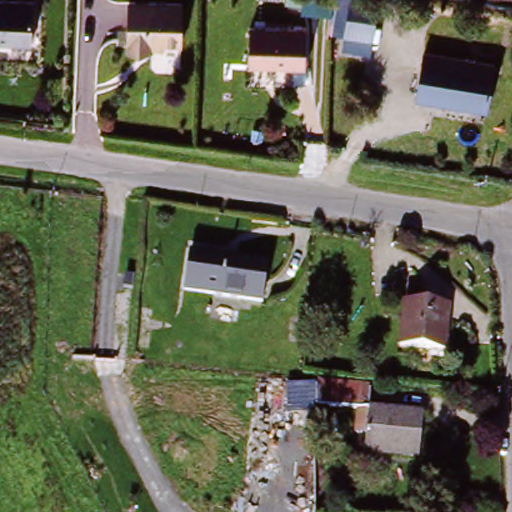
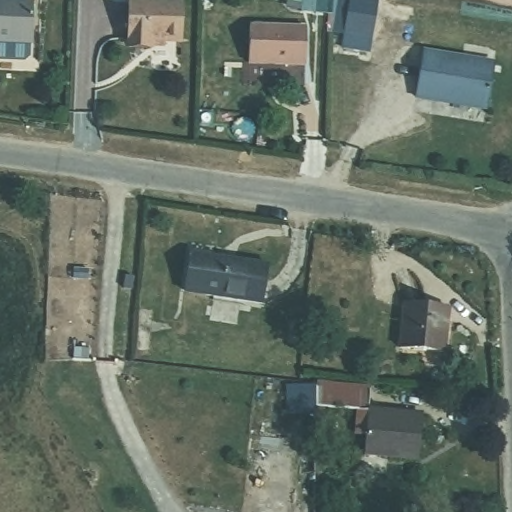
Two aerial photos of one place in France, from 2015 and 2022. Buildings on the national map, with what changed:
unchanged [(32,0),(32,40),(0,39),(0,0),(32,0)]
unchanged [(172,44),(143,42),(140,47),(120,46),(122,0),(173,4),(172,44)]
unchanged [(380,0),(382,0),(375,36),(337,27),(342,0),(380,0)]
unchanged [(303,30),(300,67),(243,61),(247,24),(303,30)]
unchanged [(482,105),(430,92),(430,98),(412,94),(422,47),(490,65),(482,105)]
unchanged [(267,253),(268,296),(185,298),(183,255),(267,253)]
unchanged [(447,310),(440,357),(397,348),(405,300),(431,306),(447,310)]
unchanged [(367,413),(330,406),(333,386),(368,393),(367,413)]
unchanged [(417,462),(362,454),(367,413),(422,421),(417,462)]

